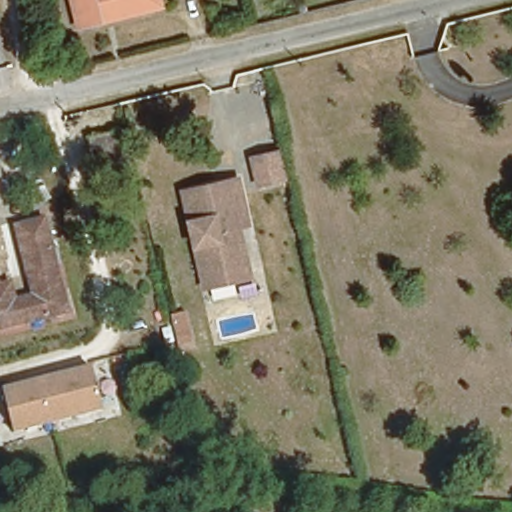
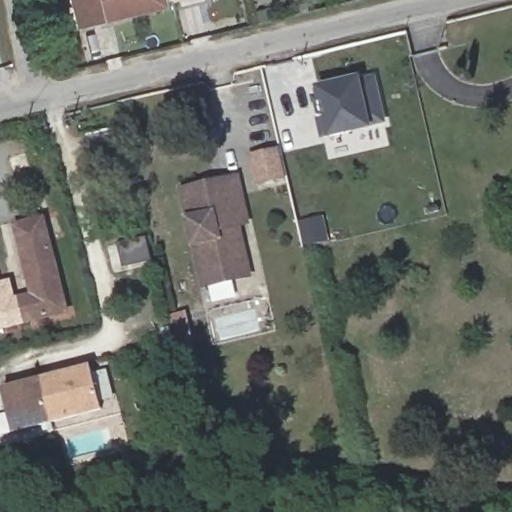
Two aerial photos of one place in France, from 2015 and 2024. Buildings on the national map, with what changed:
unchanged [(72,0),(161,0),(162,6),(114,18),(100,21),(78,28),(72,0)]
new [(171,0),(181,0),(172,3),(171,0)]
new [(373,126),(373,131),(329,140),(320,140),(311,96),(319,96),(317,87),(361,78),(376,74),(387,124),(373,126)]
unchanged [(85,130),(119,121),(131,167),(98,176),(85,130)]
unchanged [(254,188),(246,155),(279,146),(286,179),(254,188)]
unchanged [(198,286),(190,248),(175,188),(238,174),(248,227),(240,228),(250,276),(198,286)]
unchanged [(33,295),(16,229),(44,221),(66,312),(0,329),(0,286),(8,285),(12,301),(33,295)]
unchanged [(139,261),(149,298),(139,301),(129,264),(139,261)]
unchanged [(14,435),(4,389),(94,365),(105,413),(14,435)]

